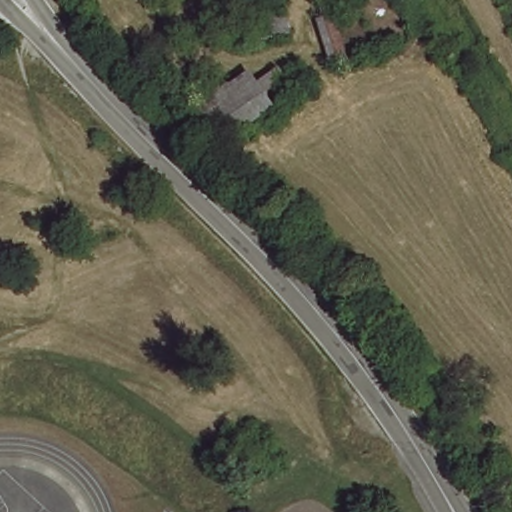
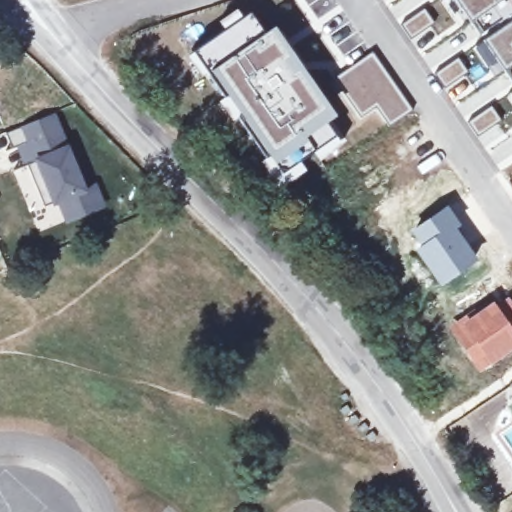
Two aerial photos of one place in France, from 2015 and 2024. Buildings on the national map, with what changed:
demolished [(352,18),(342,21),(336,0),(347,0),(352,18)]
new [(454,0),(512,0),(512,86),(454,0)]
new [(223,30),(217,21),(236,7),(242,16),(250,10),(265,31),(207,72),(191,53),(223,30)]
new [(424,10),(434,25),(410,40),(400,26),(424,10)]
new [(265,31),(273,25),(335,116),(327,122),(341,142),(319,159),(312,150),(299,160),(305,170),(279,186),(272,172),(274,171),(227,107),(229,105),(207,72),(265,31)]
new [(372,51),(412,109),(387,126),(375,109),(360,118),(335,76),(372,51)]
new [(457,59),(467,73),(444,89),(434,75),(457,59)]
new [(490,108),(500,122),(477,139),(467,123),(490,108)]
new [(47,211),(30,169),(22,150),(32,145),(15,153),(9,137),(55,118),(87,195),(97,190),(105,210),(84,219),(76,200),(47,211)]
new [(84,219),(70,225),(62,205),(76,200),(84,219)]
new [(447,204),(461,224),(455,227),(477,258),(440,285),(414,249),(419,245),(409,231),(447,204)]
new [(465,314),(467,316),(493,300),(495,303),(508,295),(512,301),(512,349),(478,372),(447,327),(465,314)]

